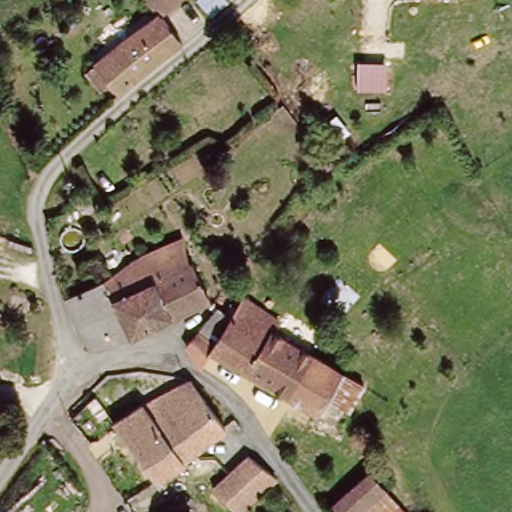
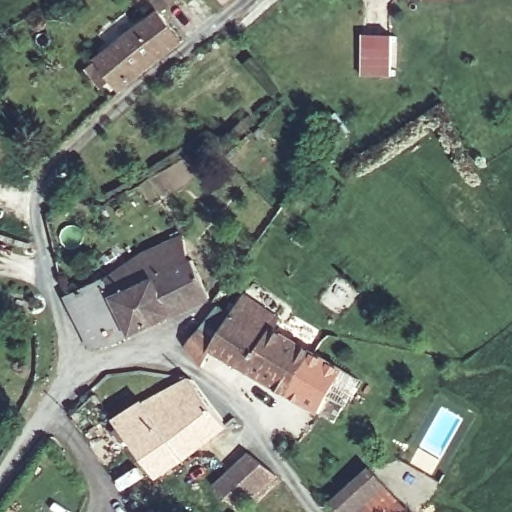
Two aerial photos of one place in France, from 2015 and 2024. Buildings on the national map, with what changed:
unchanged [(142,0),(176,0),(170,4),(156,16),(180,45),(146,74),(118,40),(153,13),(142,0)]
demolished [(197,0),(226,0),(211,14),(197,0)]
unchanged [(220,0),(227,0),(222,4),(220,0)]
new [(362,77),(363,35),(394,36),(391,76),(362,77)]
unchanged [(146,74),(120,98),(92,63),(118,40),(146,74)]
unchanged [(62,305),(96,290),(144,256),(185,237),(209,300),(130,338),(87,358),(69,322),(62,305)]
unchanged [(324,401),(315,416),(211,358),(201,371),(184,350),(196,333),(205,321),(222,333),(228,325),(242,300),(281,322),(275,333),(341,371),(365,385),(346,415),(324,401)]
unchanged [(144,409),(191,384),(230,430),(157,481),(114,424),(142,407),(144,409)]
unchanged [(251,455),(273,482),(241,512),(237,512),(218,490),(217,488),(251,455)]
unchanged [(330,502),(370,468),(383,486),(405,512),(339,512),(330,502)]

